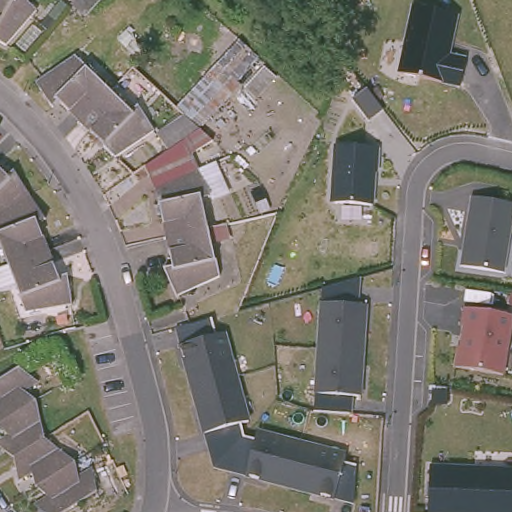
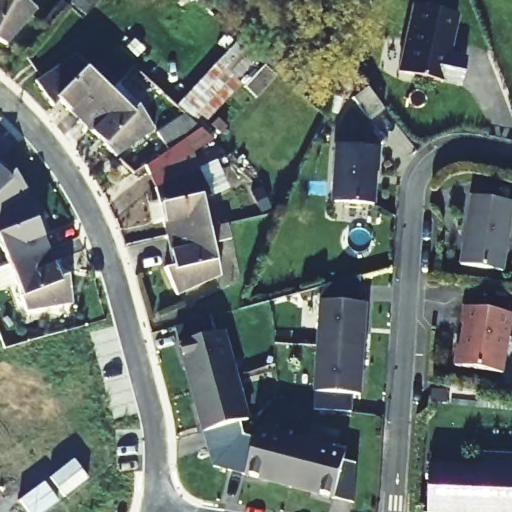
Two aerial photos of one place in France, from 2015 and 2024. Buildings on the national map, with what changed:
unchanged [(14,0),(31,15),(0,51),(0,0),(1,0),(4,2),(6,0),(14,0)]
unchanged [(72,3),(75,0),(100,0),(86,15),(72,3)]
unchanged [(393,71),(407,0),(411,0),(449,9),(443,48),(464,54),(459,85),(393,71)]
unchanged [(158,131),(177,111),(236,44),(257,61),(204,122),(167,154),(158,131)]
unchanged [(53,113),(40,90),(80,65),(114,101),(85,130),(65,109),(56,119),(53,113)]
unchanged [(366,88),(384,109),(369,121),(352,99),(366,88)]
unchanged [(134,121),(143,114),(144,118),(158,140),(121,168),(85,130),(114,101),(134,121)]
unchanged [(213,150),(191,164),(198,179),(209,202),(201,204),(203,209),(208,235),(171,245),(168,247),(156,198),(143,179),(201,137),(213,150)]
unchanged [(334,141),(381,144),(377,204),(331,202),(334,141)]
unchanged [(19,170),(22,175),(34,195),(0,217),(0,165),(11,176),(19,170)]
unchanged [(216,171),(238,227),(226,230),(208,235),(203,209),(201,204),(209,202),(198,179),(216,171)]
unchanged [(42,223),(53,251),(13,265),(0,232),(0,217),(34,195),(47,214),(49,219),(42,223)]
unchanged [(471,195),(512,201),(512,227),(505,273),(461,265),(471,195)]
unchanged [(175,275),(168,247),(171,245),(208,235),(221,287),(178,305),(168,284),(166,279),(175,275)]
unchanged [(73,274),(73,279),(76,304),(29,312),(25,295),(13,265),(53,251),(63,277),(73,274)]
unchanged [(360,395),(352,394),(351,412),(314,409),(322,287),(359,277),(358,304),(366,304),(360,395)]
unchanged [(459,345),(461,346),(464,325),(462,324),(465,307),(512,315),(512,321),(504,374),(455,366),(459,345)]
unchanged [(176,329),(200,322),(211,318),(216,334),(224,332),(248,421),(241,423),(244,436),(254,438),(256,431),(346,454),(344,461),(356,464),(354,492),(354,503),(226,469),(213,467),(176,329)]
demolished [(38,382),(25,391),(36,399),(0,422),(0,378),(18,367),(38,382)]
demolished [(0,446),(0,439),(8,434),(0,426),(0,422),(36,399),(44,437),(13,457),(0,446)]
demolished [(33,472),(18,481),(13,457),(44,437),(74,462),(36,487),(33,472)]
demolished [(74,462),(78,476),(91,467),(97,491),(63,512),(44,512),(34,504),(47,495),(36,487),(74,462)]
unchanged [(430,466),(512,469),(512,512),(487,512),(428,512),(430,466)]

